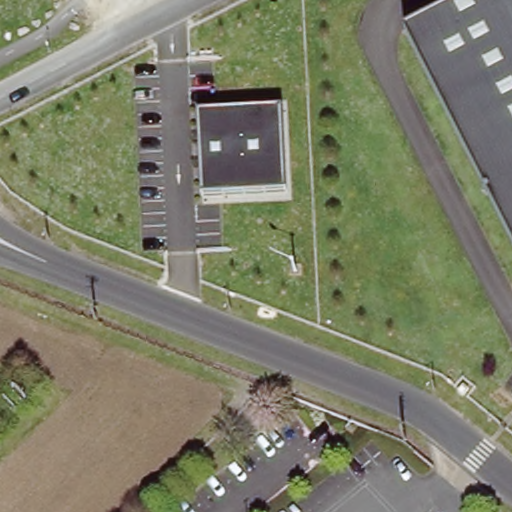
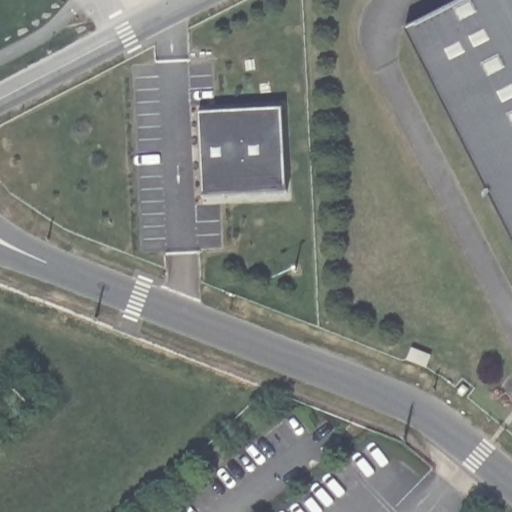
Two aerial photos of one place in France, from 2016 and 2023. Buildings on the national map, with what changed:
unchanged [(512,238),(405,24),(453,0),(512,0),(512,238)]
unchanged [(280,110),(285,192),(203,195),(199,113),(280,110)]

